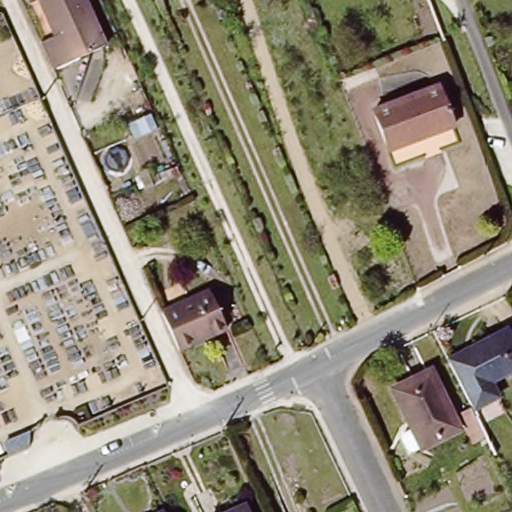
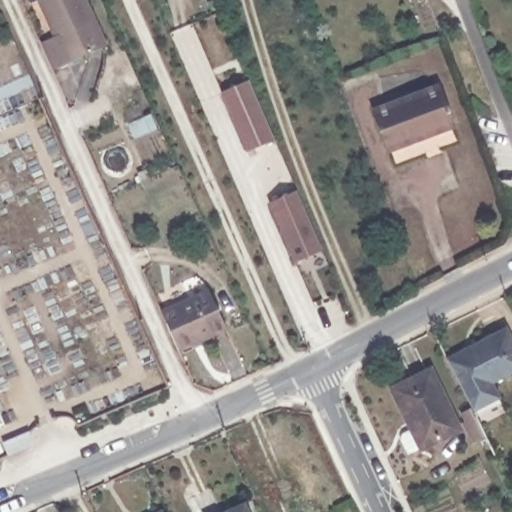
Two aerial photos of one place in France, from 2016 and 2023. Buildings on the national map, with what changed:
unchanged [(43,0),(92,0),(111,42),(56,67),(44,39),(57,33),(43,0)]
new [(246,151),(221,92),(250,80),(275,139),(246,151)]
unchanged [(372,119),(420,101),(437,95),(452,135),(435,141),(388,157),(372,119)]
new [(324,249),(295,262),(269,202),(297,190),(324,249)]
unchanged [(160,313),(209,291),(227,329),(178,352),(160,313)]
unchanged [(504,332),(512,349),(512,374),(486,387),(492,400),(471,411),(447,361),(504,332)]
unchanged [(459,432),(420,450),(392,390),(430,372),(459,432)]
unchanged [(238,508),(240,507),(242,512),(230,512),(238,508)]

